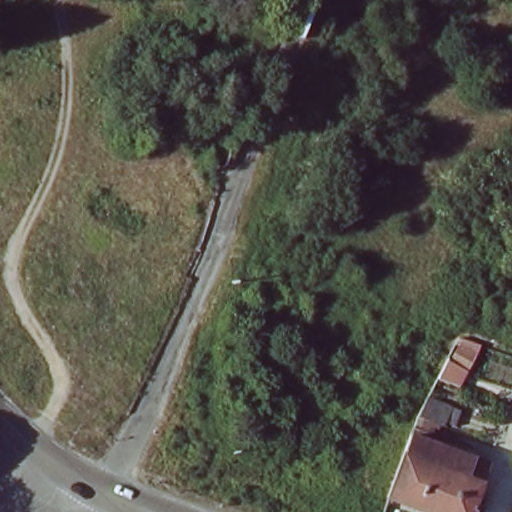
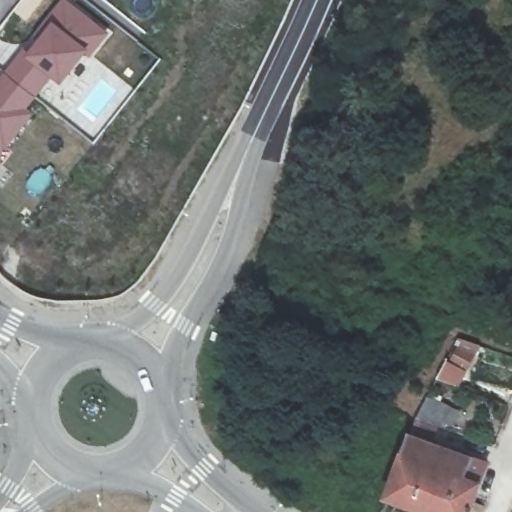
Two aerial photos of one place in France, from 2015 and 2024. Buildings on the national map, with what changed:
new [(89,60),(83,55),(60,85),(51,78),(28,108),(35,112),(3,151),(0,148),(0,78),(25,47),(61,0),(67,0),(110,34),(89,60)]
unchanged [(453,412),(452,414),(462,417),(457,432),(447,429),(446,433),(420,423),(427,404),(428,402),(453,412)]
unchanged [(470,512),(415,512),(391,503),(413,441),(486,468),(470,512)]

